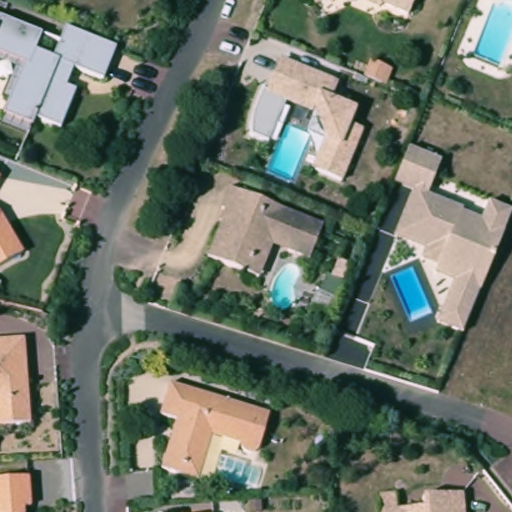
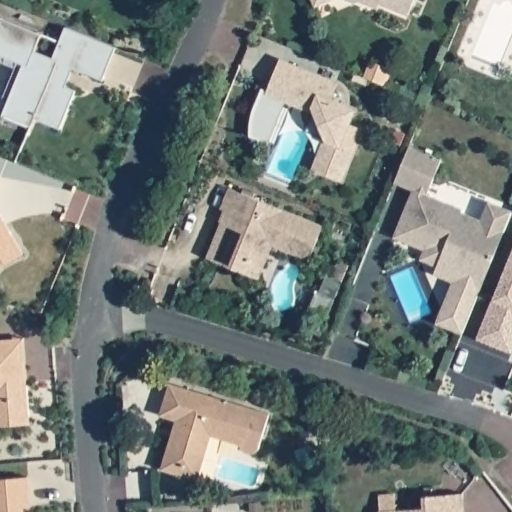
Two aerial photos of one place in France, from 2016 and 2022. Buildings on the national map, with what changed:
unchanged [(310,0),(336,0),(312,8),(310,0)]
unchanged [(364,0),(410,0),(403,16),(364,0)]
unchanged [(31,46),(51,55),(61,25),(119,48),(109,79),(72,68),(68,78),(75,81),(59,126),(35,120),(31,128),(2,115),(19,66),(0,59),(0,17),(35,31),(31,46)]
unchanged [(247,116),(258,89),(267,87),(278,59),(357,88),(350,106),(367,128),(345,182),(310,167),(322,140),(310,109),(283,101),(265,142),(250,136),(247,116)]
unchanged [(464,331),(437,321),(453,280),(435,273),(437,265),(420,259),(424,248),(393,236),(411,189),(392,181),(408,145),(442,158),(427,193),(485,216),(491,200),(512,207),(512,211),(464,331)]
unchanged [(321,226),(306,264),(269,251),(260,283),(205,259),(222,213),(218,210),(225,188),(321,226)]
unchanged [(22,258),(0,267),(0,218),(1,219),(22,258)]
new [(477,338),(493,298),(495,299),(512,254),(512,352),(477,338)]
unchanged [(26,379),(30,422),(0,424),(0,342),(23,341),(26,379)]
unchanged [(166,384),(265,415),(256,445),(252,451),(246,452),(243,452),(237,449),(234,441),(209,434),(194,482),(156,470),(172,421),(156,417),(166,384)]
unchanged [(26,509),(20,509),(20,512),(0,512),(0,481),(25,479),(26,509)]
unchanged [(420,509),(420,496),(458,497),(459,512),(380,512),(420,509)]

